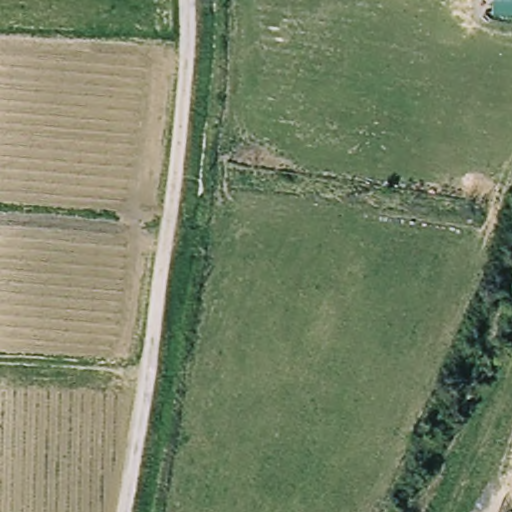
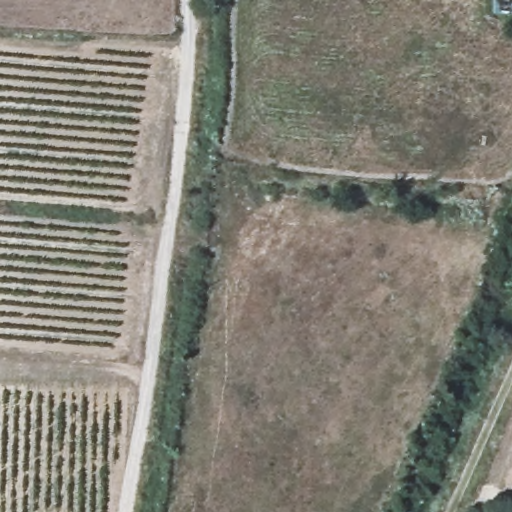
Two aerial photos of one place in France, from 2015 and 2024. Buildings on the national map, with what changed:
unchanged [(495,0),(512,0),(512,13),(494,12),(495,0)]

